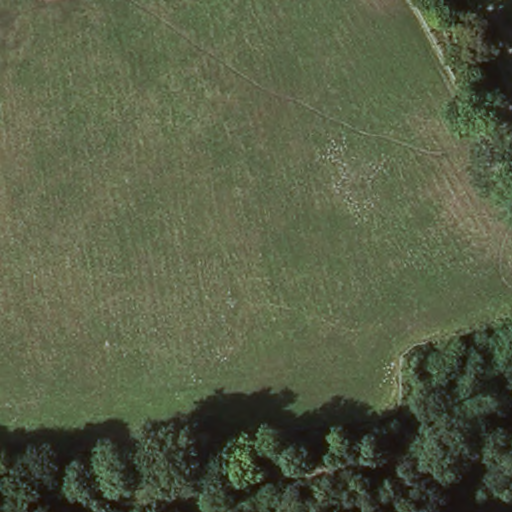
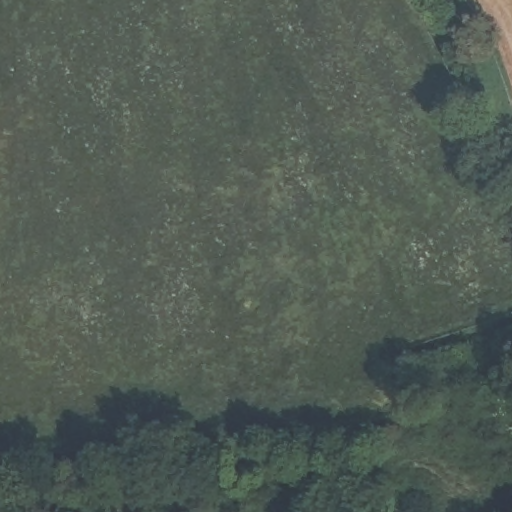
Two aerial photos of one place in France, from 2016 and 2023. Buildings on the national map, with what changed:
[]

